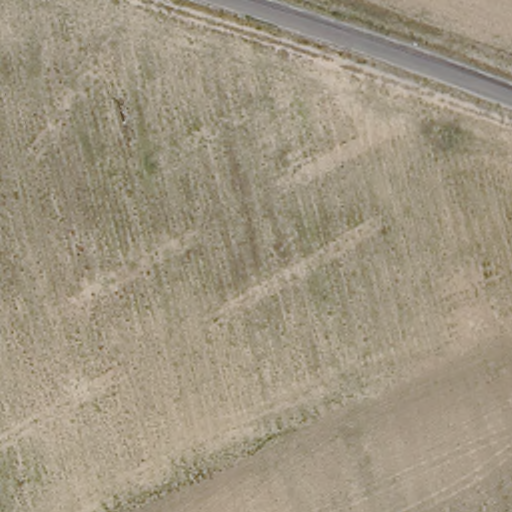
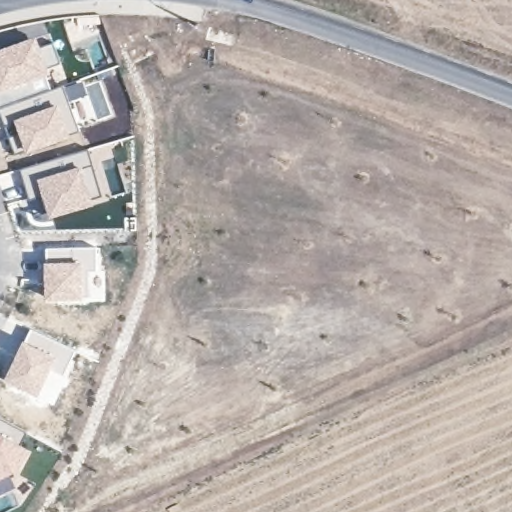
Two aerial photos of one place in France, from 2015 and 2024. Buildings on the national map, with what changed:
new [(40,46),(52,42),(60,64),(48,68),(51,76),(48,76),(50,90),(0,107),(0,48),(37,36),(40,46)]
new [(80,131),(25,153),(23,147),(14,151),(9,138),(18,134),(12,119),(5,123),(0,112),(0,107),(52,89),(62,86),(79,128),(80,131)]
new [(88,149),(105,199),(52,216),(51,212),(35,217),(20,169),(88,149)]
new [(96,246),(97,272),(90,272),(90,300),(45,300),(45,247),(96,246)]
new [(30,326),(76,349),(65,378),(55,374),(40,398),(3,380),(30,326)]
new [(20,447),(28,452),(14,475),(10,473),(0,477),(0,418),(27,433),(20,447)]

